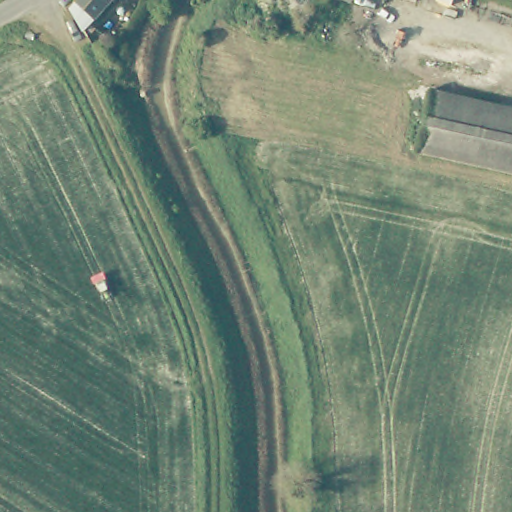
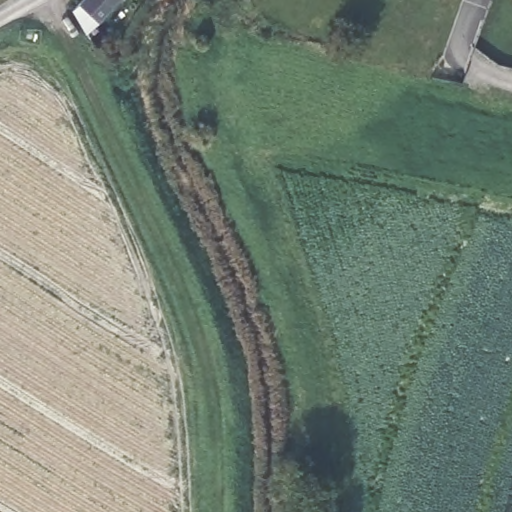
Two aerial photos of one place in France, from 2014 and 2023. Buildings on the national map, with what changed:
unchanged [(84,0),(118,0),(96,24),(100,30),(96,34),(94,28),(90,33),(75,10),(84,0)]
demolished [(512,110),(512,174),(417,153),(431,92),(512,110)]

